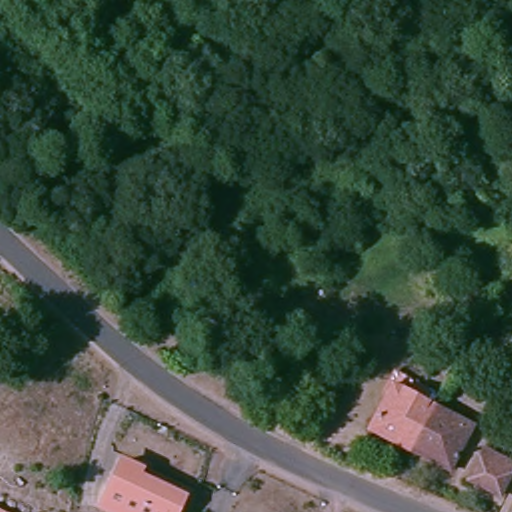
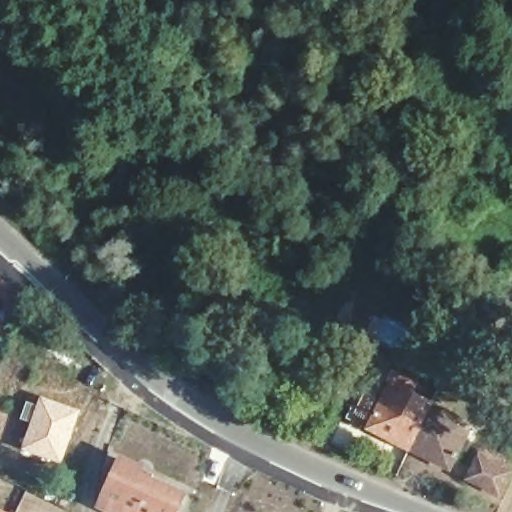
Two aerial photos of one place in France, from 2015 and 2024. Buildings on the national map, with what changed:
unchanged [(424,403),(401,448),(367,431),(389,386),(424,403)]
new [(82,411),(63,464),(22,450),(42,397),(82,411)]
unchanged [(424,403),(473,428),(451,473),(401,448),(424,403)]
unchanged [(512,467),(512,479),(507,492),(475,476),(485,454),(512,467)]
unchanged [(138,472),(136,480),(182,496),(177,512),(117,512),(105,508),(121,467),(138,472)]
unchanged [(0,510),(4,512),(0,512),(0,510)]

